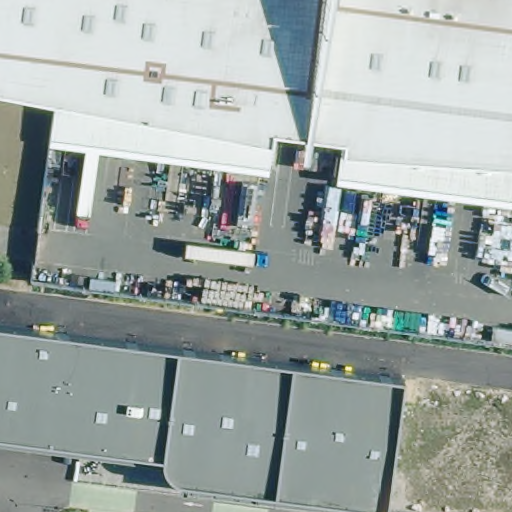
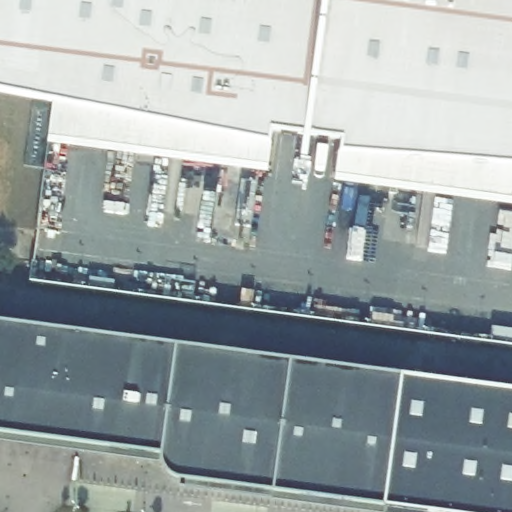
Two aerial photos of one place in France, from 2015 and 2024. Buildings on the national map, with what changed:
unchanged [(437,169),(337,156),(337,153),(340,153),(341,140),(270,132),(268,144),(270,144),(270,147),(51,117),(53,102),(0,92),(0,0),(512,0),(512,177),(437,169)]
unchanged [(51,117),(270,147),(267,173),(47,144),(51,117)]
unchanged [(337,156),(437,169),(512,177),(512,206),(335,182),(337,156)]
unchanged [(386,507),(202,485),(175,481),(161,470),(161,458),(0,441),(0,322),(402,377),(386,507)]
new [(512,392),(512,512),(419,512),(386,507),(402,377),(512,392)]

